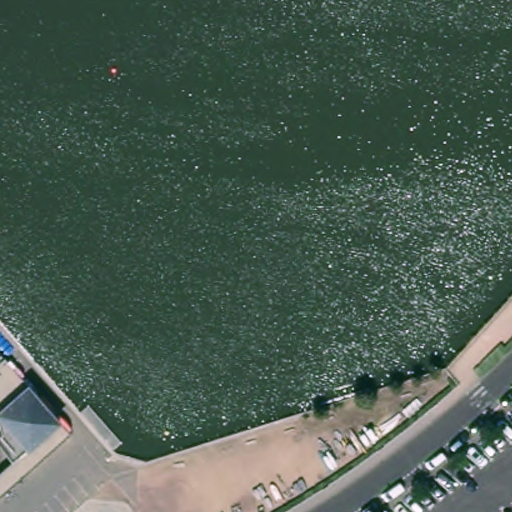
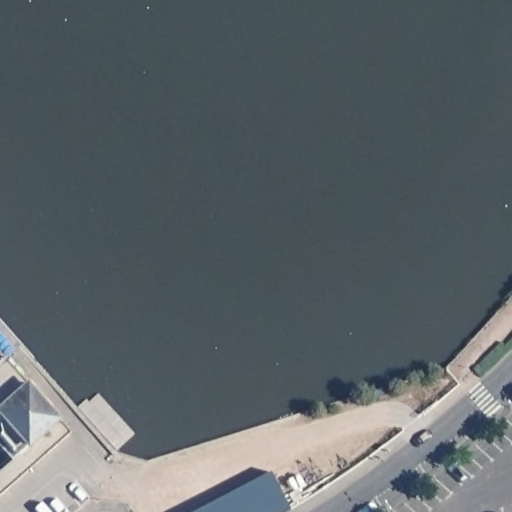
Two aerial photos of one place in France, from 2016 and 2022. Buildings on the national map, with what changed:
unchanged [(10,425),(0,412),(0,363),(6,357),(72,432),(41,460),(0,496),(0,471),(19,455),(5,440),(0,433),(10,425)]
new [(271,475),(294,508),(287,512),(198,512),(271,475)]

